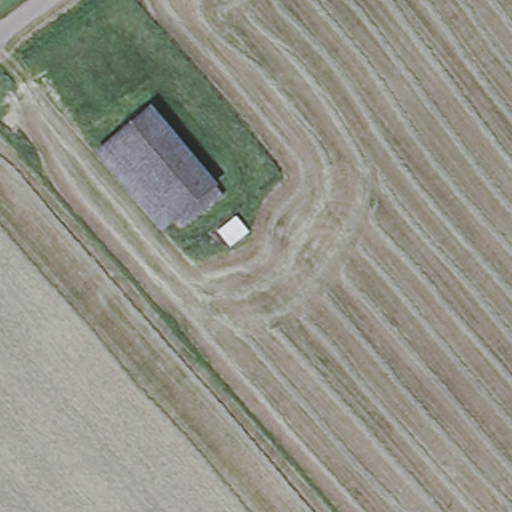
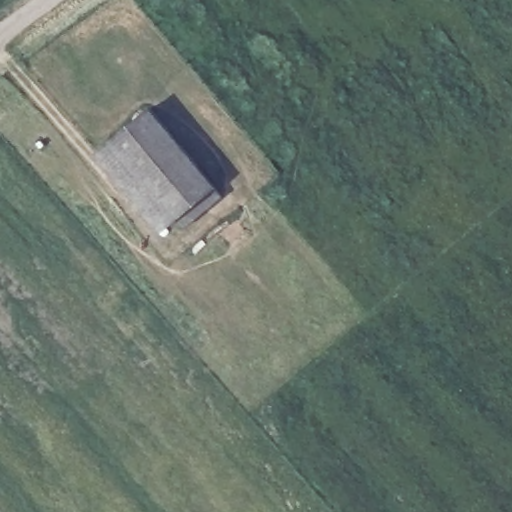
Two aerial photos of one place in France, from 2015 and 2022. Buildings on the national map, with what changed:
unchanged [(144,116),(209,194),(170,227),(105,150),(144,116)]

